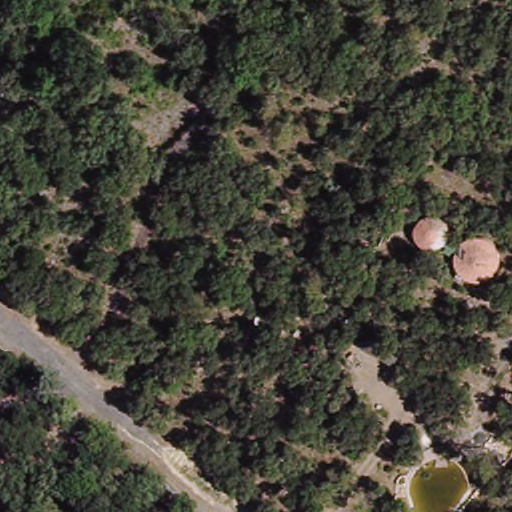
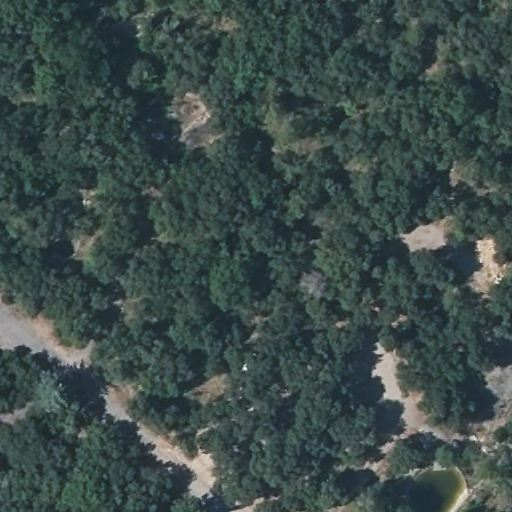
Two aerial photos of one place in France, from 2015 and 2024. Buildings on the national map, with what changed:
[]

